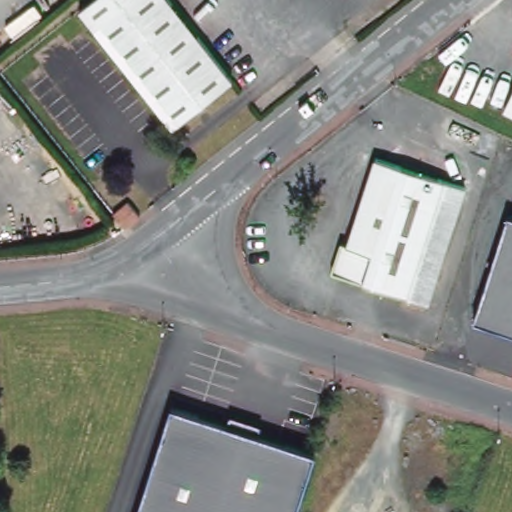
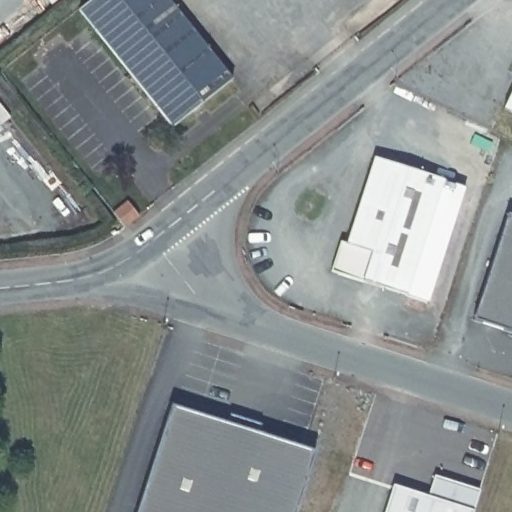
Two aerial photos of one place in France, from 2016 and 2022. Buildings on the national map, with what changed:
unchanged [(78,10),(91,0),(130,0),(94,29),(78,10)]
unchanged [(173,128),(94,29),(130,0),(169,0),(233,81),(173,128)]
unchanged [(504,108),(512,91),(512,112),(504,108)]
unchanged [(341,242),(347,244),(375,158),(444,180),(406,296),(337,274),(331,272),(341,242)]
unchanged [(465,187),(427,303),(406,296),(444,180),(465,187)]
unchanged [(139,216),(124,228),(112,213),(128,201),(139,216)]
unchanged [(506,215),(512,216),(512,333),(491,327),(472,321),(506,215)]
unchanged [(290,443),(318,452),(299,512),(141,512),(175,406),(290,443)]
new [(393,484),(428,495),(435,474),(480,489),(473,512),(385,512),(393,484)]

